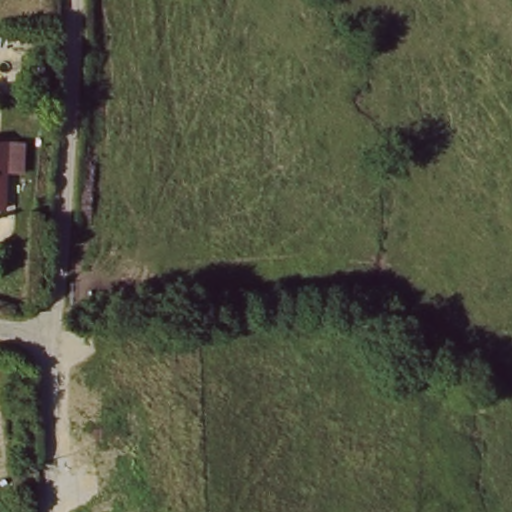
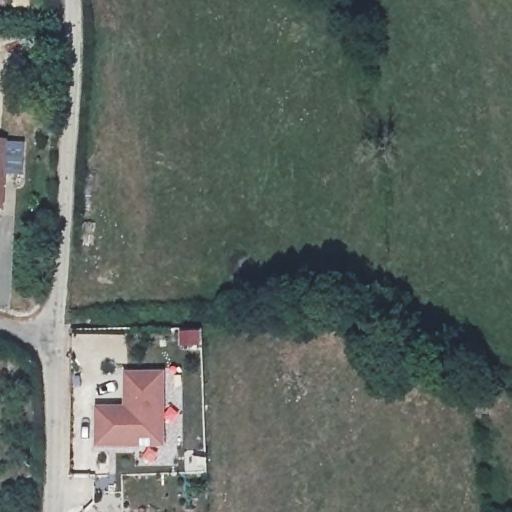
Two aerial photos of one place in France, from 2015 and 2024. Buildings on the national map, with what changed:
new [(163,448),(95,448),(95,405),(124,405),(124,372),(165,372),(163,448)]

